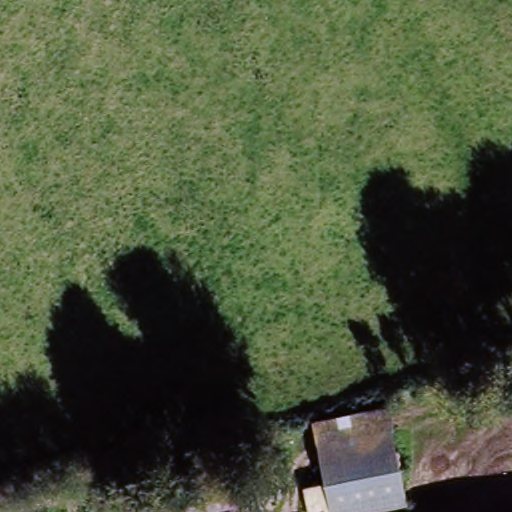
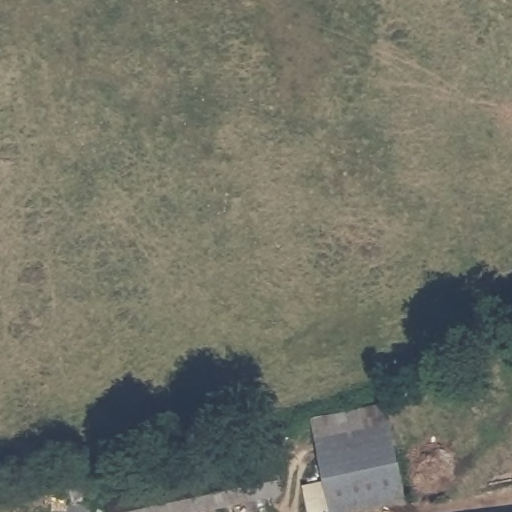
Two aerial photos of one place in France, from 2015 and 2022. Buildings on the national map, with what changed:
unchanged [(320,480),(315,442),(311,419),(385,402),(387,426),(405,506),(378,512),(306,512),(302,486),(320,480)]
unchanged [(107,512),(104,500),(271,468),(280,503),(231,512),(107,512)]

